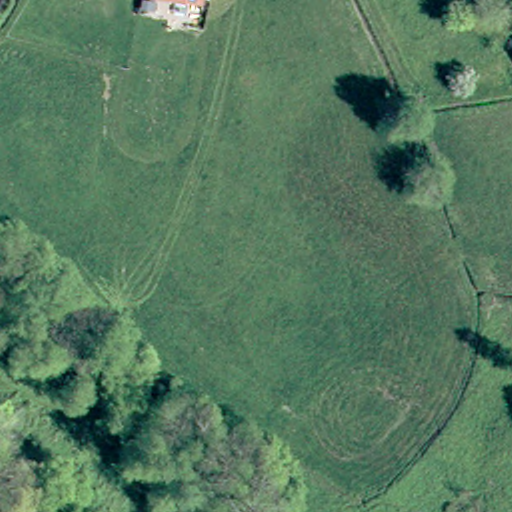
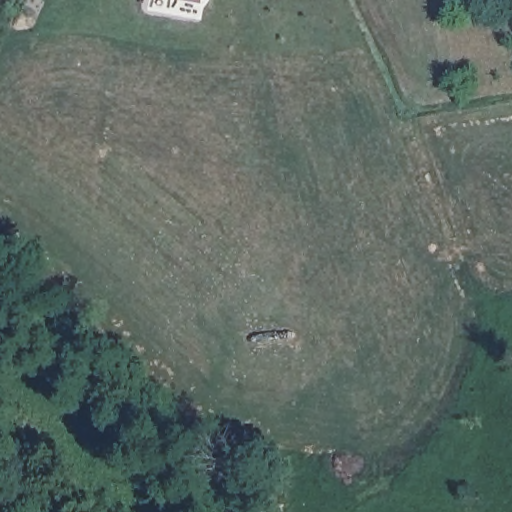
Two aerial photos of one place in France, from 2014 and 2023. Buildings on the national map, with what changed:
unchanged [(192,0),(205,0),(204,2),(192,0)]

